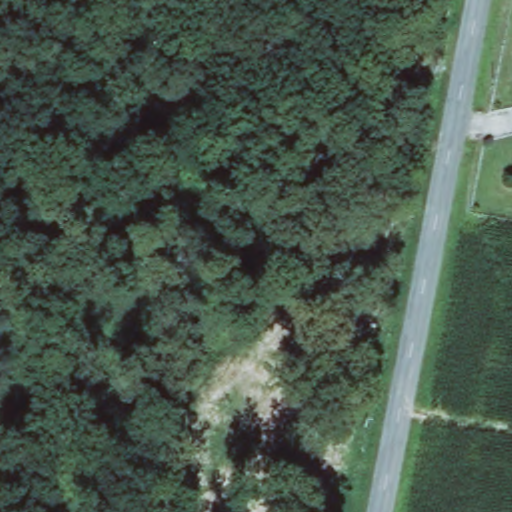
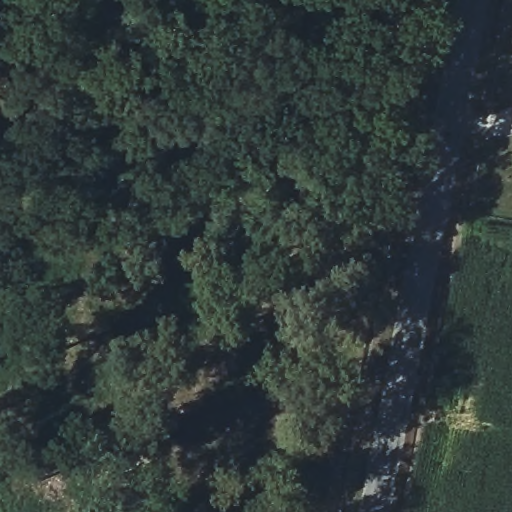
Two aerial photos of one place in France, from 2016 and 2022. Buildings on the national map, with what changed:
[]

